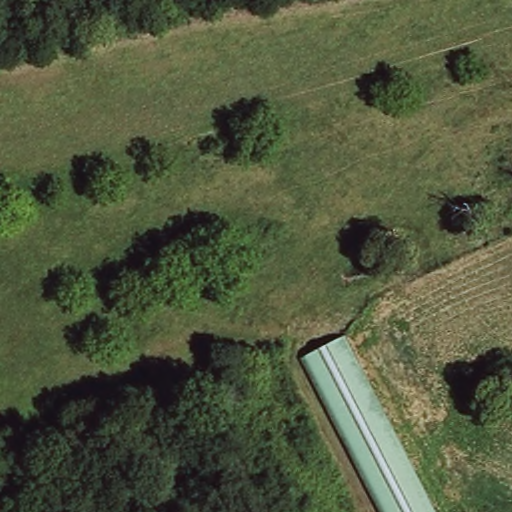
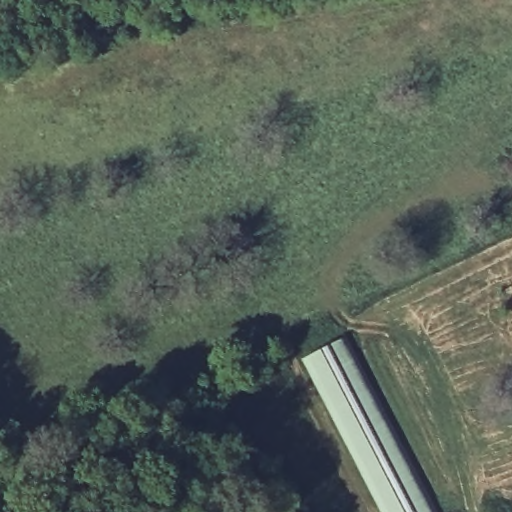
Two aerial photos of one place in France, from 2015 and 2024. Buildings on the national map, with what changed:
unchanged [(317,357),(359,336),(451,512),(398,512),(317,357)]

